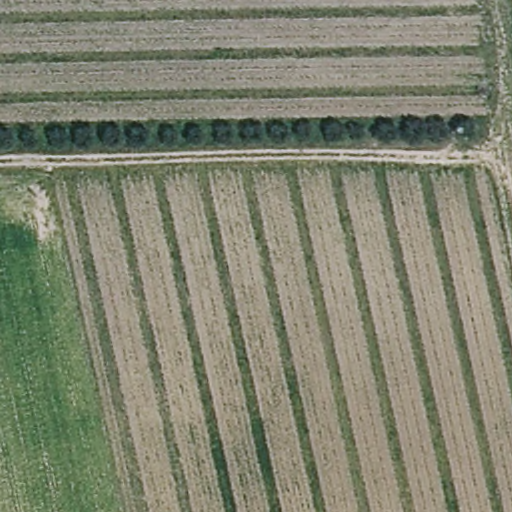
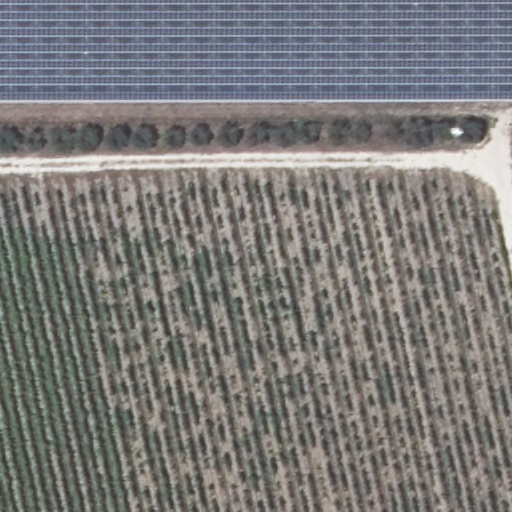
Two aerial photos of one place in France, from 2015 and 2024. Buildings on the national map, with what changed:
new [(0,0),(512,0),(512,97),(0,99),(0,0)]

